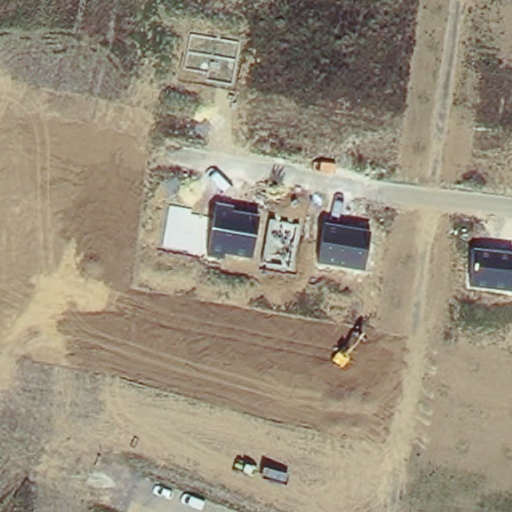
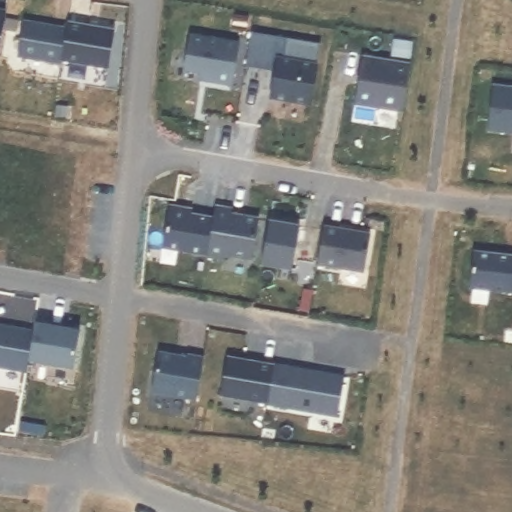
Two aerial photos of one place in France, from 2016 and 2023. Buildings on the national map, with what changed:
new [(64,25),(65,19),(117,29),(110,70),(63,60),(62,66),(17,56),(23,19),(64,25)]
new [(311,103),(271,95),(275,70),(246,65),(252,30),(287,36),(283,57),(318,64),(311,103)]
new [(233,82),(206,77),(208,70),(185,66),(191,31),(240,40),(233,82)]
new [(403,110),(355,102),(363,54),(410,61),(403,110)]
new [(493,84),(512,86),(512,130),(488,127),(493,84)]
unchanged [(160,242),(169,204),(193,208),(192,212),(212,215),(215,205),(234,207),(233,213),(258,218),(253,258),(225,254),(223,260),(206,255),(160,242)]
unchanged [(269,221),(298,227),(290,267),(262,263),(269,221)]
unchanged [(324,225),(372,234),(365,272),(317,265),(324,225)]
unchanged [(512,257),(512,293),(511,292),(469,288),(473,253),(512,257)]
new [(70,365),(26,358),(32,320),(77,328),(70,365)]
new [(23,370),(0,366),(0,323),(31,328),(23,370)]
new [(194,398),(149,390),(156,350),(185,355),(185,353),(201,356),(194,398)]
new [(264,402),(218,394),(225,355),(271,363),(264,402)]
new [(335,415),(264,402),(271,363),(342,375),(335,415)]

